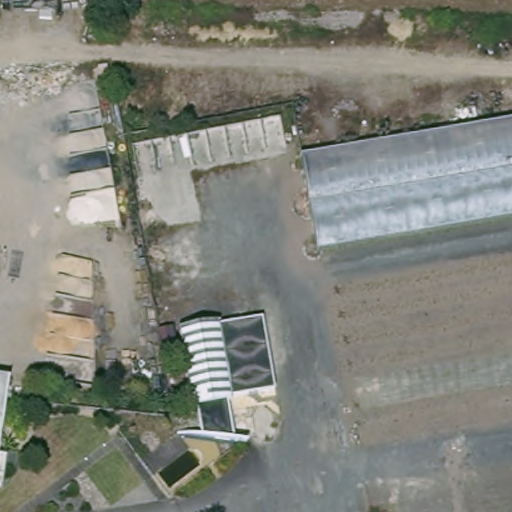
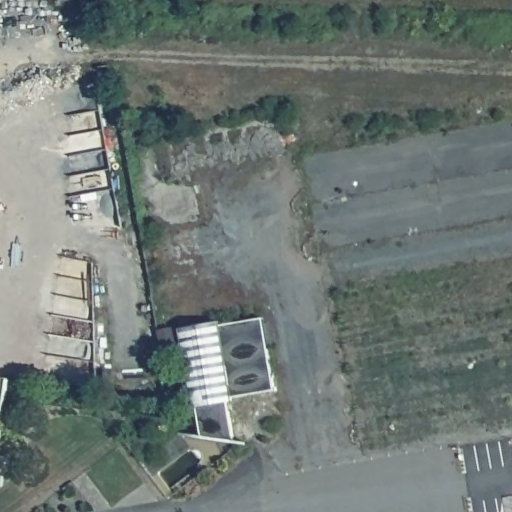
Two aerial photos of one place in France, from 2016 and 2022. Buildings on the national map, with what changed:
demolished [(318,254),(301,156),(512,120),(512,220),(318,254)]
unchanged [(235,400),(229,400),(237,441),(206,438),(202,408),(195,410),(178,332),(222,322),(235,400)]
unchanged [(4,457),(0,456),(0,378),(15,380),(4,457)]

